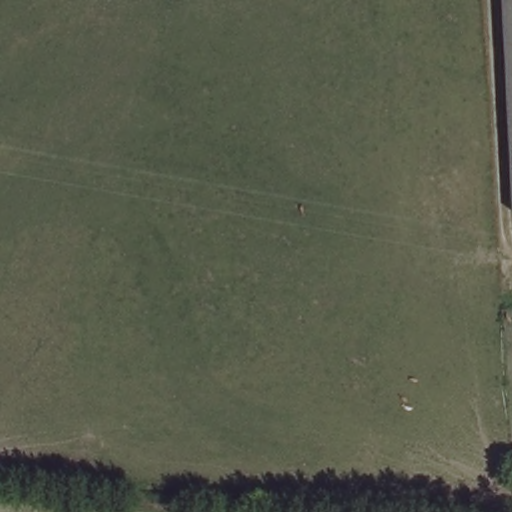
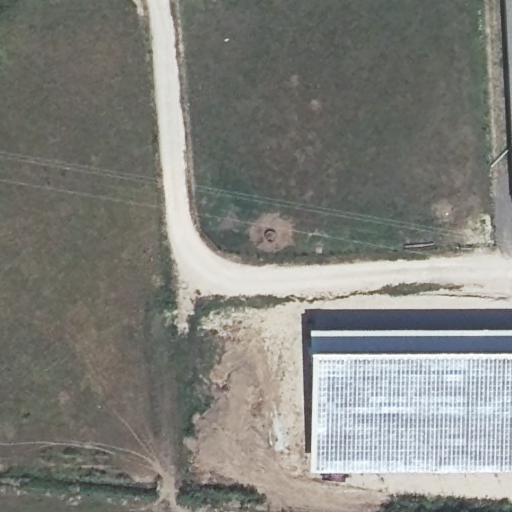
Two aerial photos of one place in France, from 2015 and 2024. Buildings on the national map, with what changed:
unchanged [(512,0),(512,53),(509,0),(512,0)]
new [(512,325),(512,467),(484,467),(310,470),(307,326),(512,325)]

